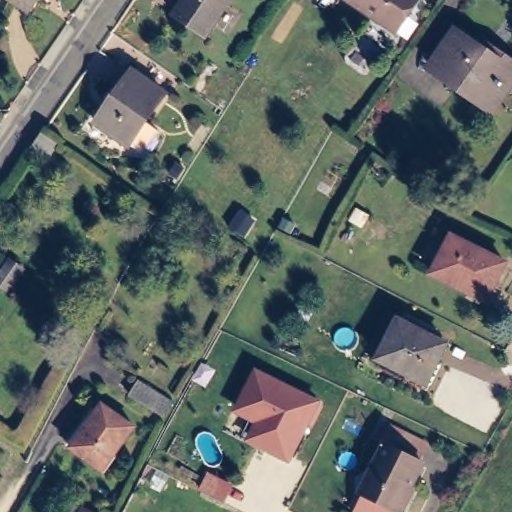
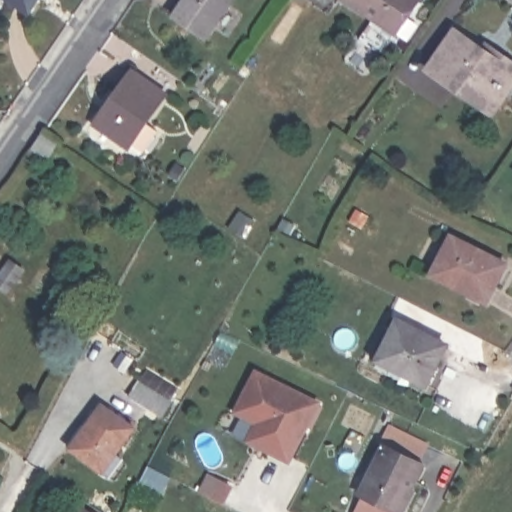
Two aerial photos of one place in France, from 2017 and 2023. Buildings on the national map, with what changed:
unchanged [(12,0),(34,0),(27,10),(12,0)]
unchanged [(227,0),(206,30),(205,32),(175,12),(175,10),(183,0),(227,0)]
unchanged [(346,0),(420,0),(397,34),(346,0)]
unchanged [(482,106),(426,68),(451,33),(478,51),(481,46),(493,53),(512,67),(512,74),(503,86),(487,109),(482,106)]
unchanged [(130,142),(126,145),(93,123),(129,72),(161,95),(143,120),(150,125),(155,129),(140,149),(136,147),(130,142)]
unchanged [(37,128),(49,137),(53,139),(43,154),(26,143),(37,128)]
unchanged [(502,265),(483,303),(430,277),(448,240),(502,265)]
unchanged [(450,345),(430,385),(382,360),(402,321),(450,345)]
unchanged [(316,400),(286,461),(244,441),(253,424),(231,412),(255,368),(316,400)]
unchanged [(166,398),(158,410),(125,390),(133,377),(166,398)]
unchanged [(139,427),(107,473),(91,461),(75,449),(106,404),(117,412),(139,427)]
unchanged [(357,508),(367,490),(362,487),(387,438),(427,459),(401,507),(396,505),(393,512),(364,512),(357,508)]
unchanged [(87,512),(73,512),(77,505),(87,512)]

